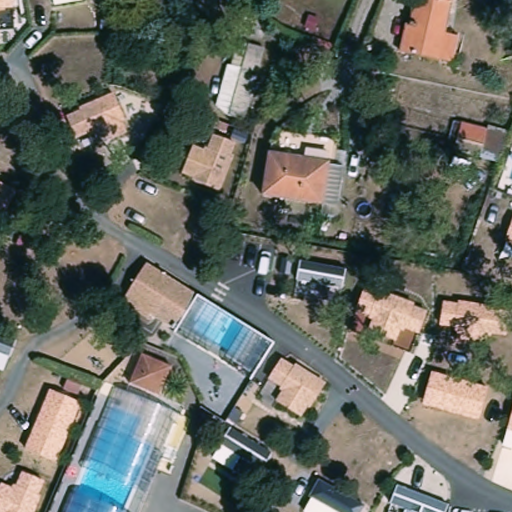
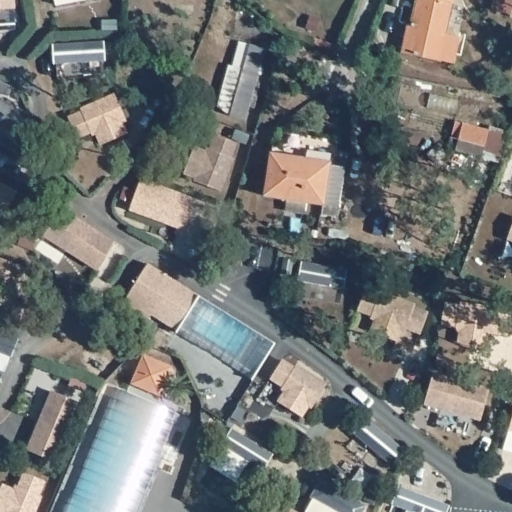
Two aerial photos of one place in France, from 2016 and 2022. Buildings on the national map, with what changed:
unchanged [(15,10),(0,11),(0,0),(14,0),(15,10)]
unchanged [(54,6),(53,0),(78,0),(54,6)]
unchanged [(419,0),(454,0),(445,40),(460,43),(454,67),(404,57),(408,35),(410,35),(419,0)]
unchanged [(229,115),(232,105),(222,102),(241,41),(265,48),(247,110),(244,120),(229,115)]
unchanged [(128,128),(96,144),(91,133),(75,140),(64,116),(79,109),(79,106),(114,92),(128,128)]
unchanged [(451,152),(460,120),(487,130),(489,124),(512,133),(512,134),(500,165),(451,152)]
unchanged [(444,135),(434,147),(426,140),(435,128),(444,135)]
unchanged [(207,150),(212,134),(236,143),(231,156),(233,157),(220,191),(191,180),(192,177),(182,174),(193,146),(207,150)]
unchanged [(343,166),(335,208),(261,195),(270,151),(343,166)]
new [(140,178),(193,198),(183,230),(129,209),(140,178)]
unchanged [(32,196),(17,230),(0,222),(0,181),(32,196)]
new [(59,209),(113,240),(95,270),(42,235),(59,209)]
unchanged [(512,219),(512,241),(505,239),(512,219)]
unchanged [(123,301),(127,294),(148,261),(199,293),(176,329),(150,313),(148,318),(123,301)]
unchanged [(419,336),(402,329),(397,344),(367,334),(373,318),(361,314),(362,309),(357,306),(364,286),(414,301),(412,306),(427,312),(419,336)]
unchanged [(509,337),(489,333),(486,348),(455,342),(456,331),(439,328),(444,300),(457,302),(457,299),(511,309),(509,337)]
unchanged [(18,335),(3,372),(0,371),(0,329),(18,335)]
unchanged [(171,365),(159,395),(129,383),(141,352),(171,365)]
unchanged [(294,366),(295,364),(326,383),(312,408),(310,406),(304,417),(276,402),(283,389),(268,379),(282,359),(294,366)]
unchanged [(490,386),(481,421),(422,406),(430,371),(490,386)]
unchanged [(82,403),(58,463),(23,449),(47,390),(82,403)]
unchanged [(512,414),(512,451),(501,448),(512,414)]
unchanged [(273,454),(260,474),(239,462),(234,472),(212,458),(232,425),(273,454)]
unchanged [(38,495),(41,497),(35,512),(0,512),(0,485),(1,482),(14,488),(21,472),(44,479),(38,495)]
unchanged [(359,512),(302,512),(319,480),(364,503),(359,512)]
unchanged [(448,512),(403,512),(404,510),(390,504),(397,483),(450,504),(448,512)]

